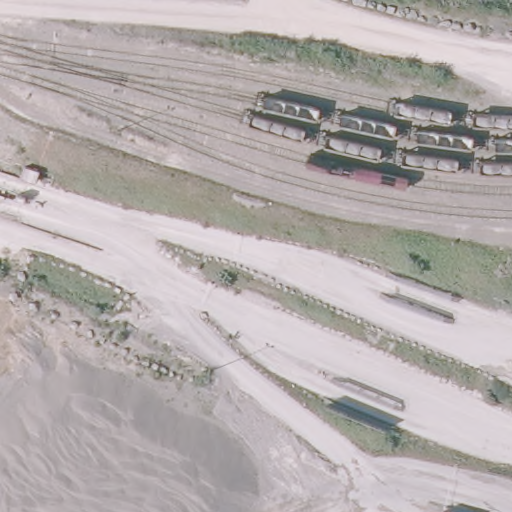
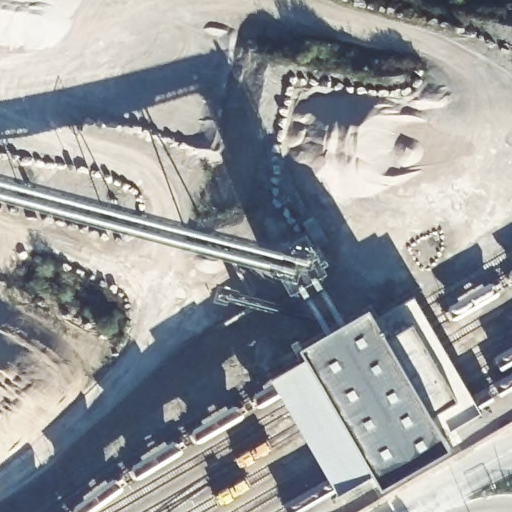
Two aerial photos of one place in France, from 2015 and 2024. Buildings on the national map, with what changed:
new [(417,310),(476,421),(434,446),(448,465),(375,505),(370,483),(339,500),(272,388),(417,310)]

